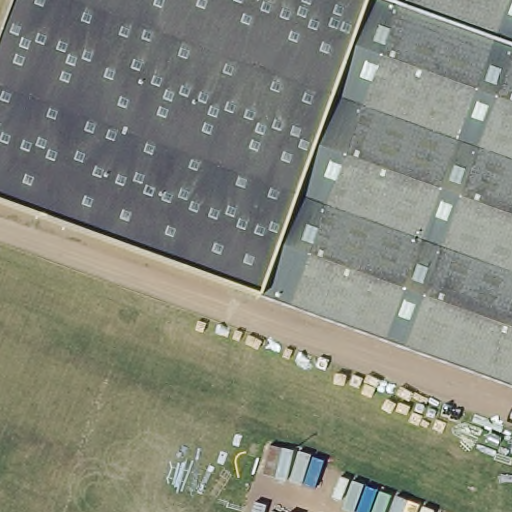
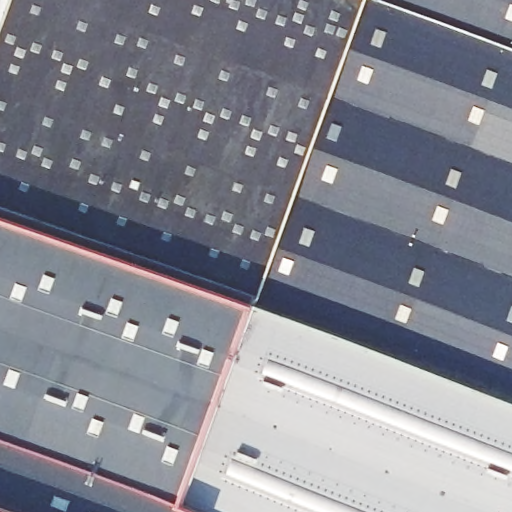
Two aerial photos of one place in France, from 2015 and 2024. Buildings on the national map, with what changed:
unchanged [(512,382),(258,290),(257,291),(0,197),(0,21),(7,0),(512,0),(512,382)]
new [(0,438),(0,197),(257,291),(258,290),(512,382),(512,512),(207,512),(177,501),(0,438)]
new [(4,512),(0,511),(0,438),(177,501),(207,512),(4,512)]
new [(4,512),(0,512),(0,511),(4,512)]

